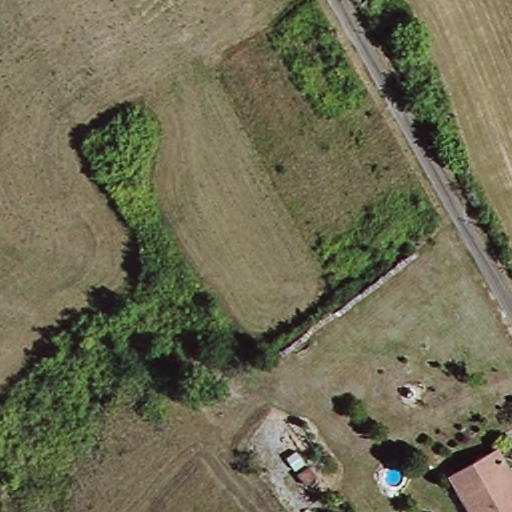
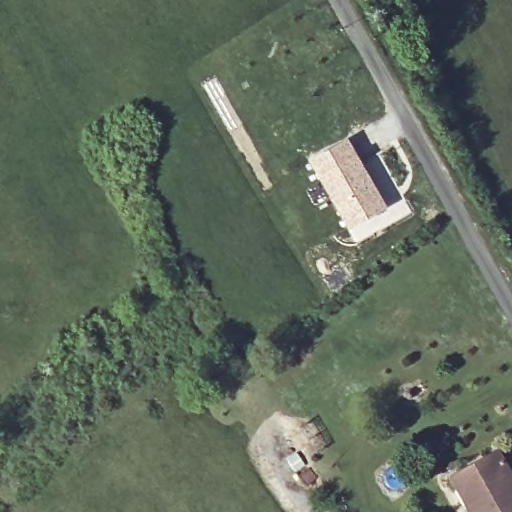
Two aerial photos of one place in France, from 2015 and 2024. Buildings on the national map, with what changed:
new [(348,141),(386,209),(352,229),(313,161),(348,141)]
unchanged [(457,477),(506,450),(512,462),(512,512),(475,512),(457,477)]

